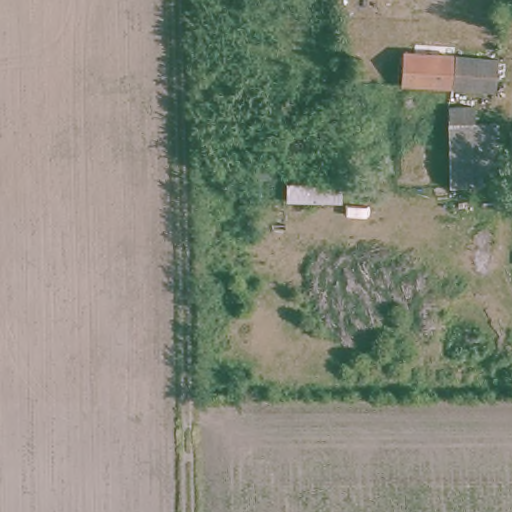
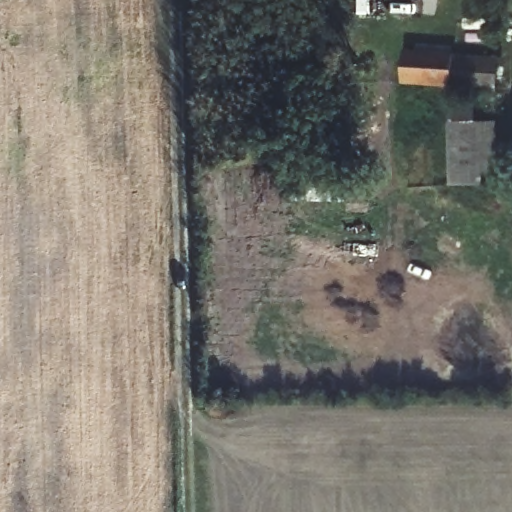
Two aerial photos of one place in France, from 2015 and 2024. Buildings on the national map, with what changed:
unchanged [(495,89),(452,84),(453,75),(403,70),(405,48),(497,56),(495,89)]
unchanged [(477,184),(453,184),(452,168),(452,120),(500,119),(501,170),(502,184),(477,184)]

